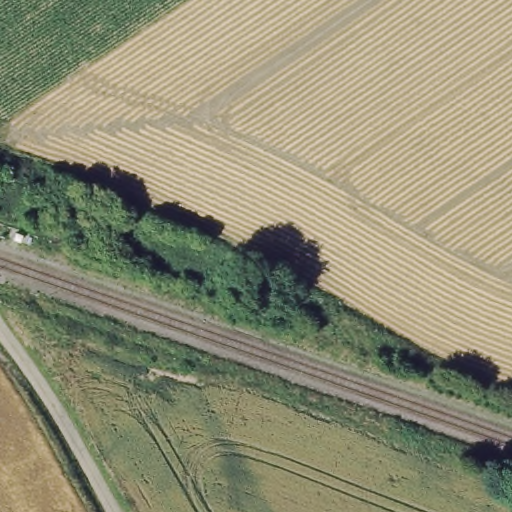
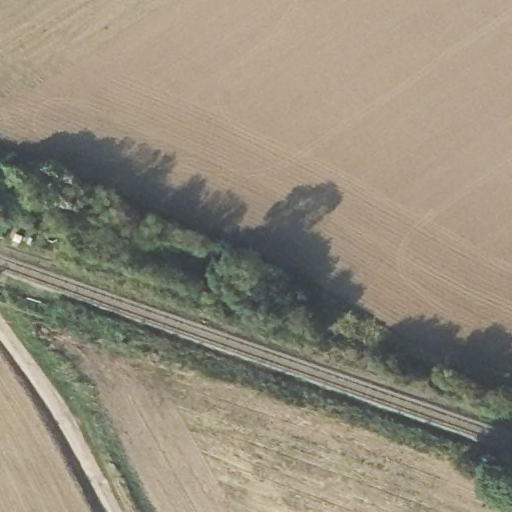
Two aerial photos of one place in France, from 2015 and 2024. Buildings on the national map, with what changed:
unchanged [(67,181),(92,189),(90,200),(64,192),(67,181)]
unchanged [(42,197),(34,230),(0,219),(0,208),(7,185),(42,197)]

